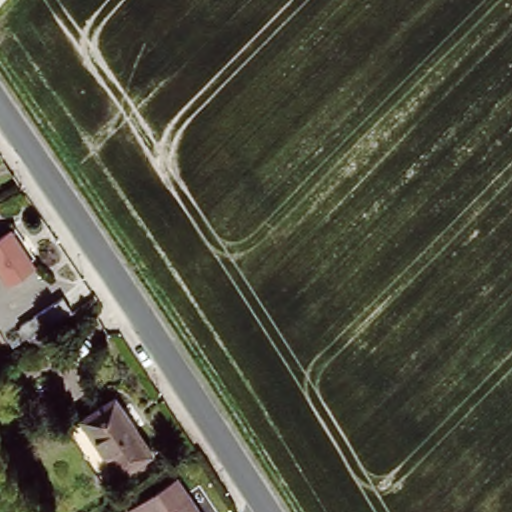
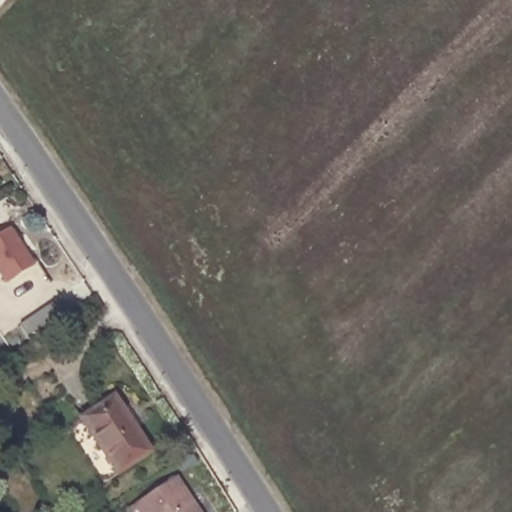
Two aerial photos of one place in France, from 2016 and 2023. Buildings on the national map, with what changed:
unchanged [(35,267),(8,285),(0,272),(0,233),(11,226),(35,267)]
unchanged [(27,358),(17,341),(58,316),(69,331),(27,358)]
unchanged [(75,414),(109,393),(144,448),(110,471),(75,414)]
unchanged [(203,512),(131,512),(128,506),(180,475),(203,512)]

